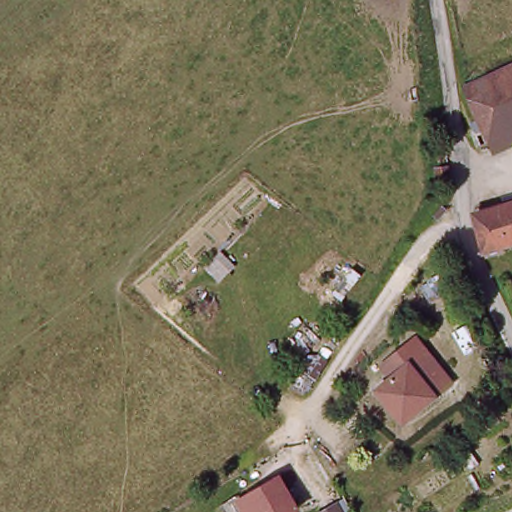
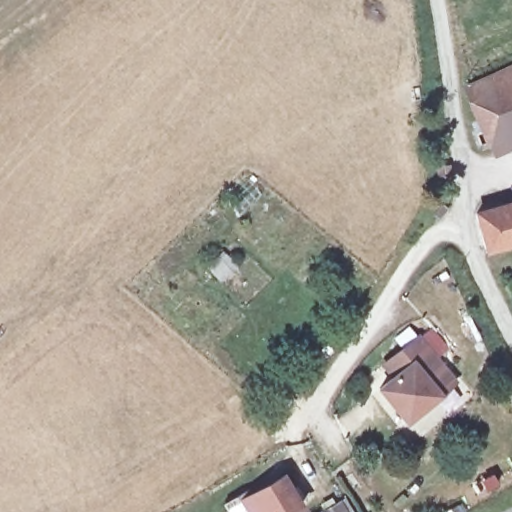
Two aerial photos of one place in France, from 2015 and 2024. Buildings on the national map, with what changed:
unchanged [(464,101),(512,79),(512,144),(491,154),(464,101)]
unchanged [(489,225),(486,210),(512,203),(512,241),(496,246),(489,225)]
unchanged [(458,382),(410,417),(385,382),(398,372),(389,360),(400,352),(423,335),(458,382)]
unchanged [(282,512),(249,512),(241,495),(278,475),(295,505),(282,512)]

